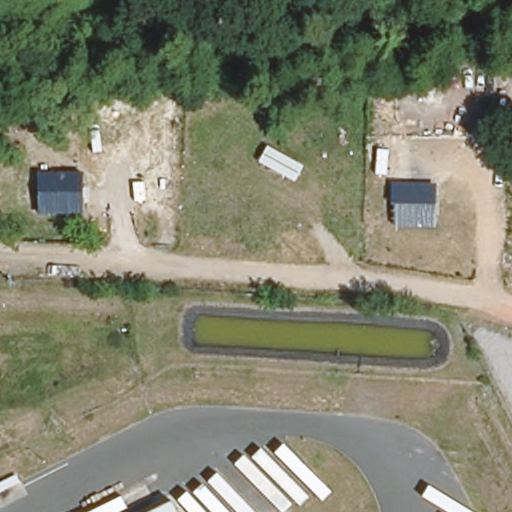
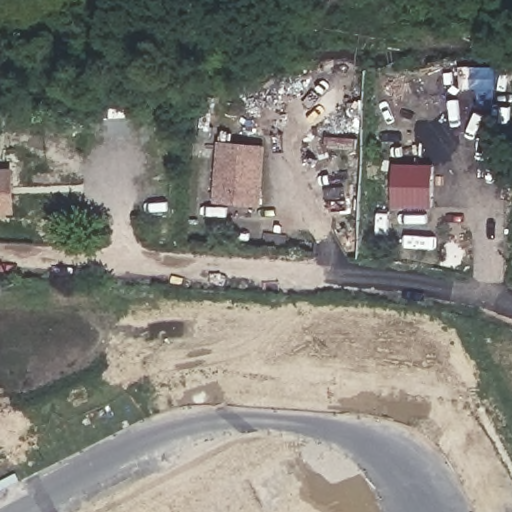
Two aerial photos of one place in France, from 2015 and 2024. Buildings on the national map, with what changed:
new [(262,206),(213,203),(218,140),(267,144),(262,206)]
new [(394,209),(395,163),(435,163),(434,209),(394,209)]
new [(0,168),(15,168),(16,213),(0,213),(0,168)]
unchanged [(180,512),(147,512),(173,499),(180,512)]

